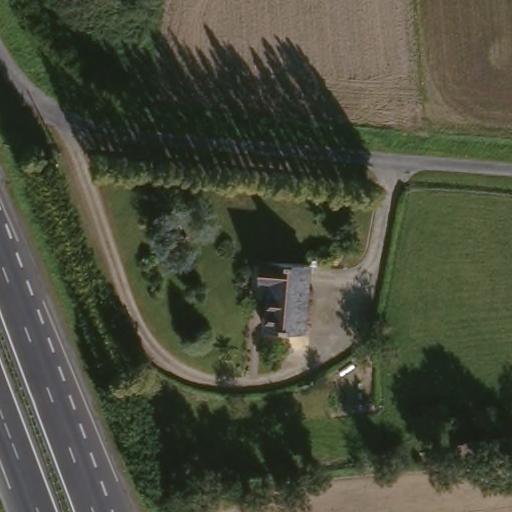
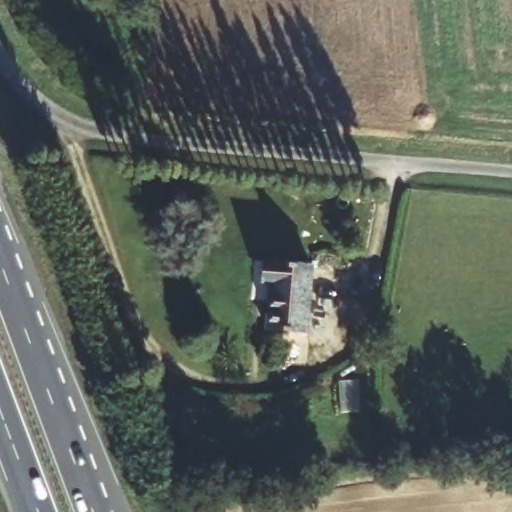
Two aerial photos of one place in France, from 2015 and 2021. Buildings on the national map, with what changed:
unchanged [(310,264),(305,332),(266,330),(270,284),(260,283),(261,260),(310,264)]
unchanged [(450,456),(450,441),(512,433),(512,449),(450,456)]

